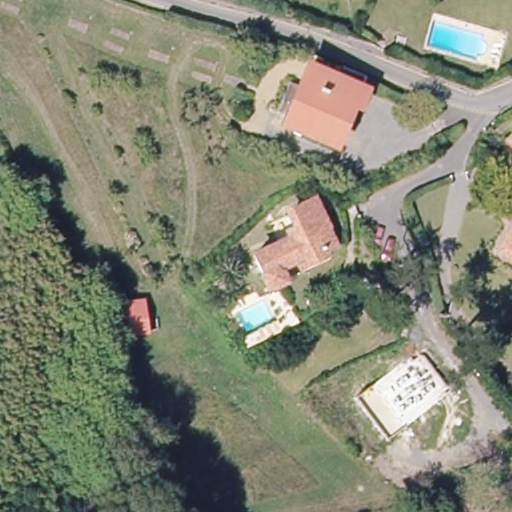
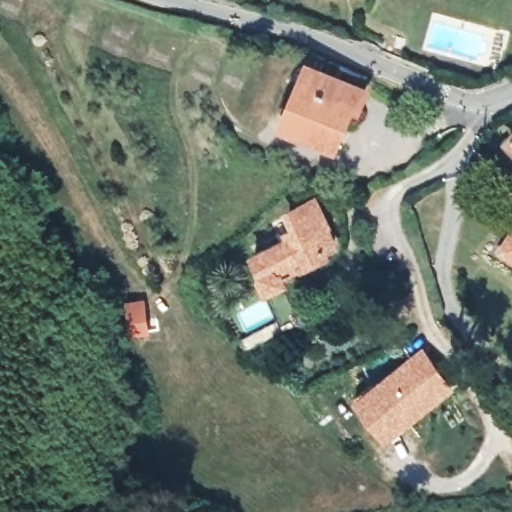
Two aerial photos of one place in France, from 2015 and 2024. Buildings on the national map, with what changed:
unchanged [(362,99),(365,100),(358,118),(350,115),(335,152),(286,134),(288,129),(275,124),(287,94),(301,98),(308,79),(335,88),(339,75),(366,86),(362,99)]
unchanged [(512,138),(512,144),(509,142),(512,138)]
unchanged [(280,292),(264,262),(300,245),(298,237),(305,235),(298,219),(325,207),(338,236),(336,237),(343,252),(335,256),(338,264),(315,275),(293,286),(280,292)]
unchanged [(500,245),(512,227),(512,253),(500,245)]
unchanged [(120,298),(137,297),(139,308),(151,307),(155,326),(124,330),(120,298)]
new [(373,384),(377,388),(425,354),(450,386),(403,422),(406,427),(390,438),(358,396),(373,384)]

